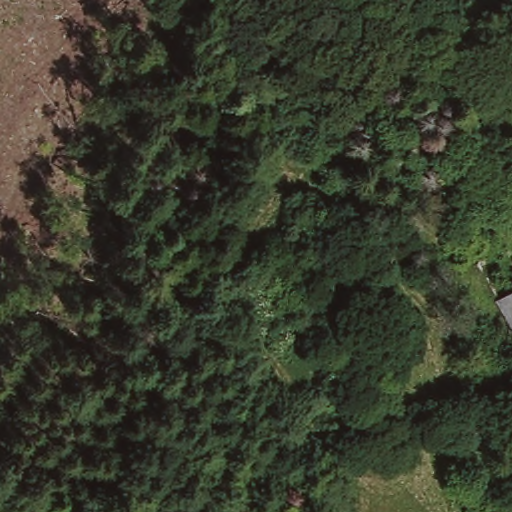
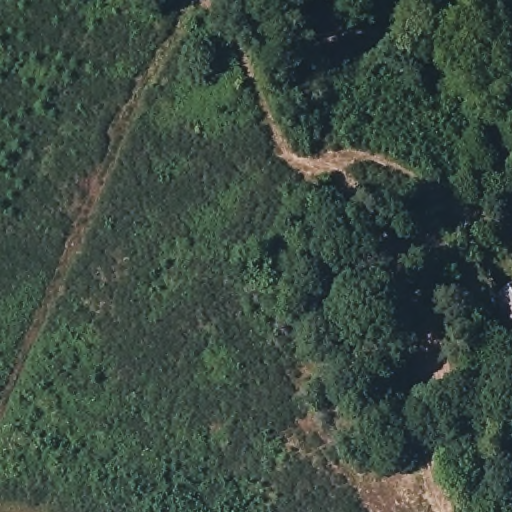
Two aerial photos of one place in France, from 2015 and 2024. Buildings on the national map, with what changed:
unchanged [(504,221),(512,217),(512,237),(504,221)]
unchanged [(488,294),(512,283),(512,337),(488,294)]

